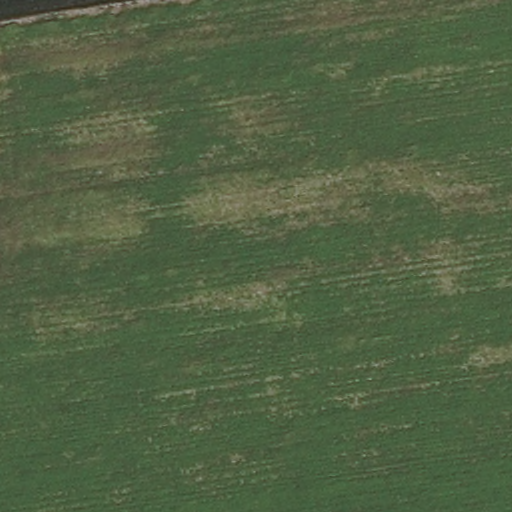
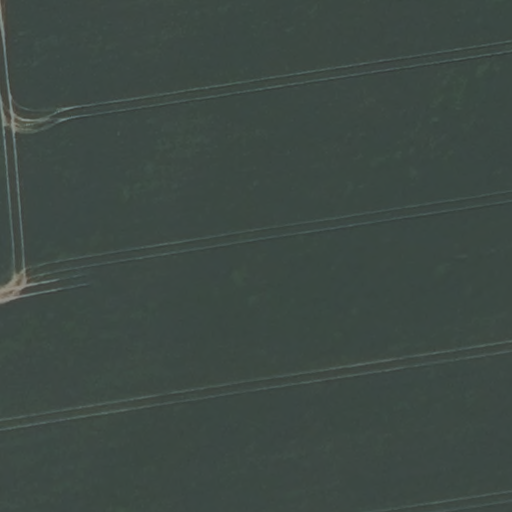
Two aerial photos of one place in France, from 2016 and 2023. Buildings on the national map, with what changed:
[]

